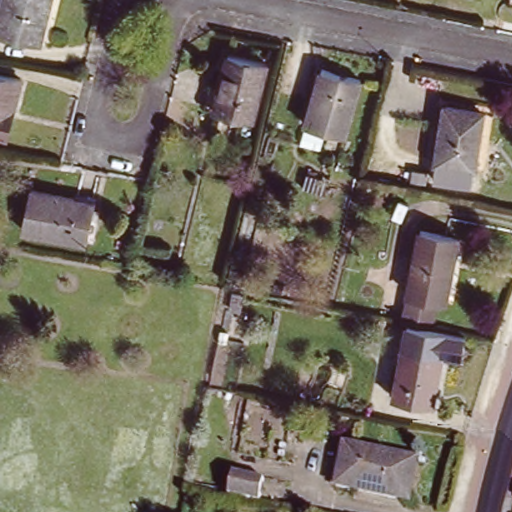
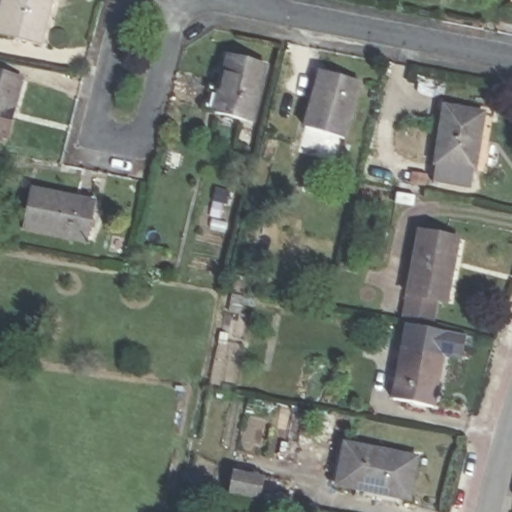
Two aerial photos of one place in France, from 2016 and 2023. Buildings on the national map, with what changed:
unchanged [(0,35),(0,31),(8,0),(52,0),(40,45),(0,35)]
unchanged [(266,61),(253,119),(217,111),(230,52),(266,61)]
unchanged [(363,78),(350,137),(315,130),(327,71),(363,78)]
unchanged [(6,138),(0,137),(0,76),(21,81),(6,138)]
unchanged [(491,119),(472,173),(440,159),(457,107),(491,119)]
unchanged [(335,142),(330,157),(309,151),(313,136),(335,142)]
unchanged [(99,204),(90,243),(22,227),(33,188),(99,204)]
unchanged [(425,231),(462,237),(453,295),(448,295),(443,326),(412,319),(425,231)]
unchanged [(466,335),(461,356),(443,352),(432,397),(397,389),(412,322),(466,335)]
unchanged [(420,462),(410,503),(337,485),(348,443),(420,462)]
unchanged [(232,470),(267,478),(262,498),(227,490),(232,470)]

